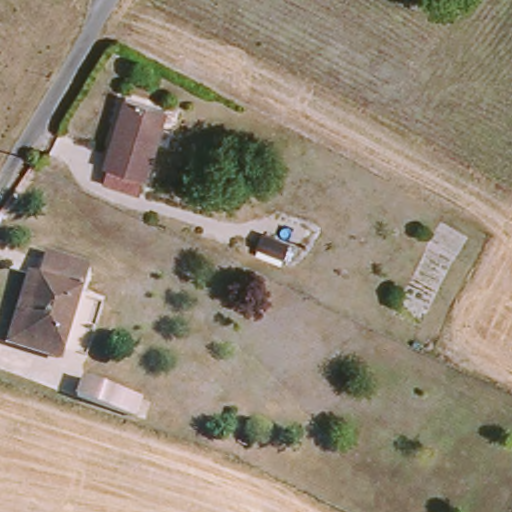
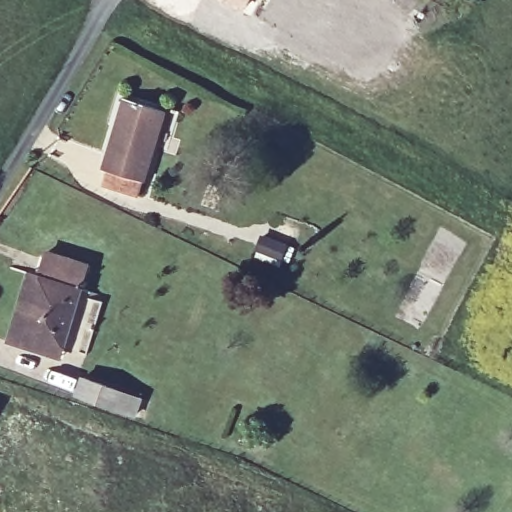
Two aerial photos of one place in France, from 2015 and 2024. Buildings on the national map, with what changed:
new [(243,11),(223,0),(249,0),(243,11)]
unchanged [(114,166),(110,165),(132,96),(171,109),(147,192),(117,184),(109,181),(114,166)]
unchanged [(28,332),(45,273),(52,251),(92,265),(66,345),(28,332)]
unchanged [(28,332),(66,345),(63,355),(14,340),(36,270),(45,273),(28,332)]
unchanged [(142,413),(90,396),(96,378),(148,396),(142,413)]

